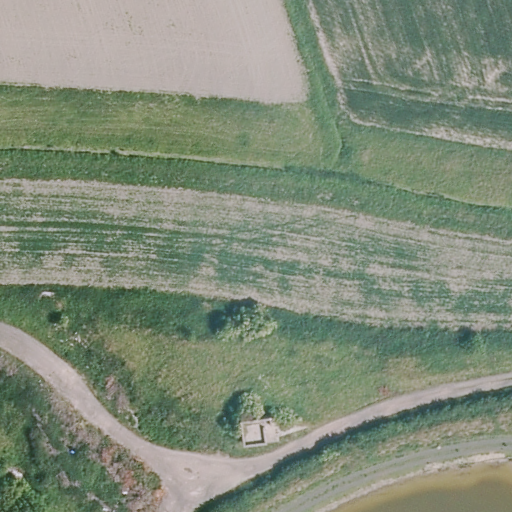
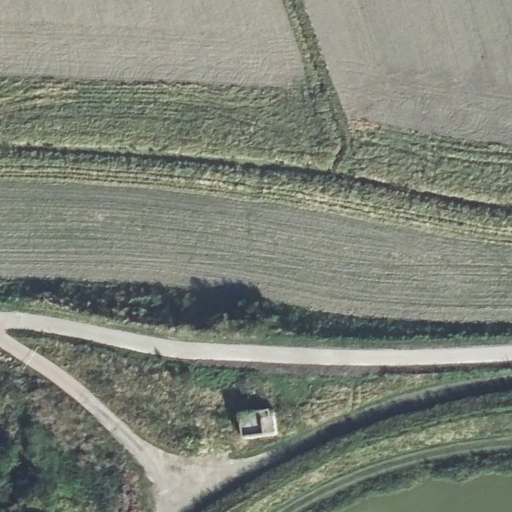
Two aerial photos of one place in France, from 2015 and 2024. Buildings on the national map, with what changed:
unchanged [(278,411),(282,437),(245,442),(241,415),(278,411)]

